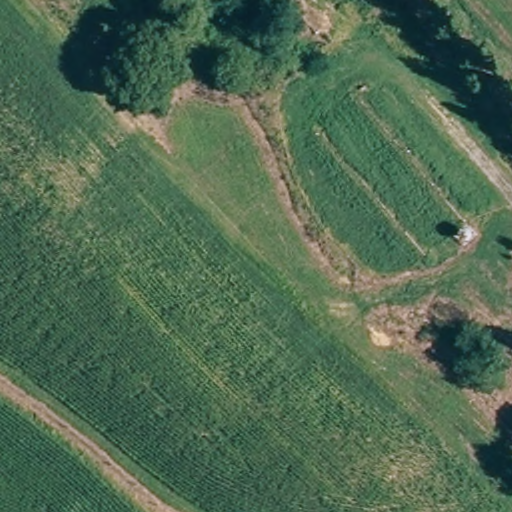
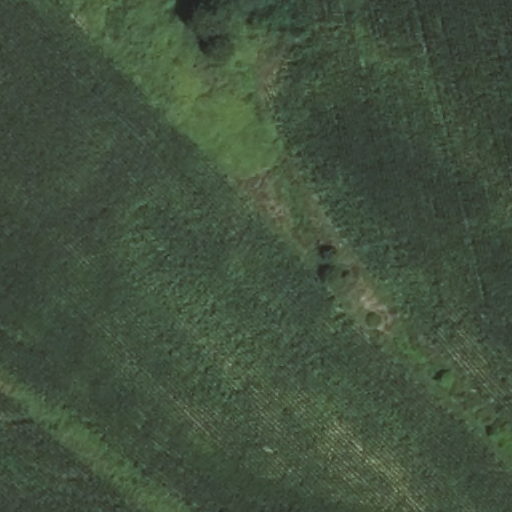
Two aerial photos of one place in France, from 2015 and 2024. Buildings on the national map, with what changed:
[]

